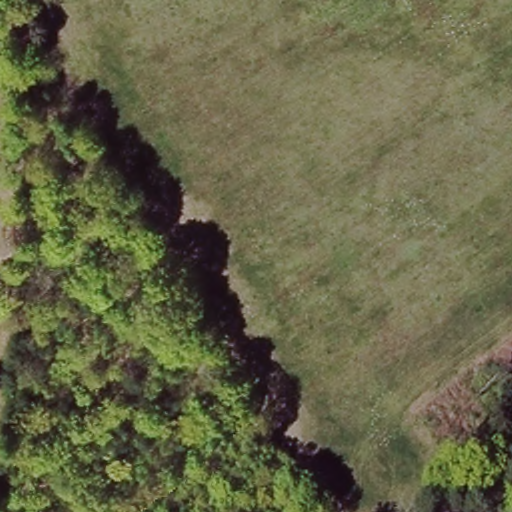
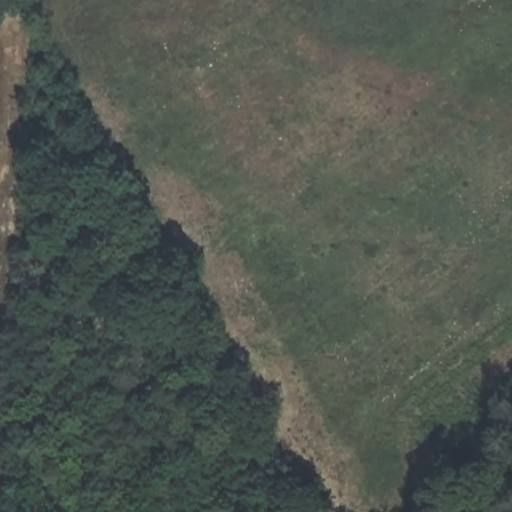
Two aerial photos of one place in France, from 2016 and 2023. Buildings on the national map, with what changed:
[]

